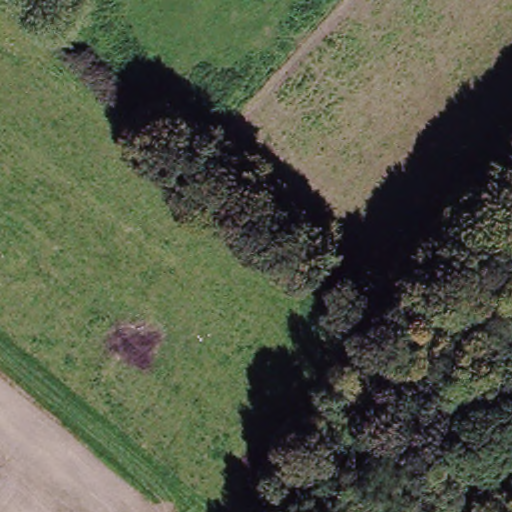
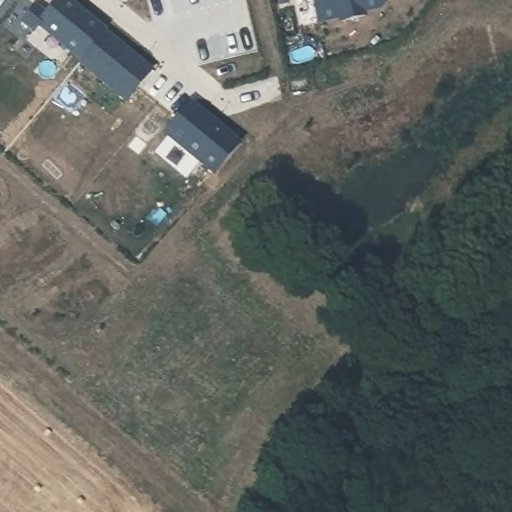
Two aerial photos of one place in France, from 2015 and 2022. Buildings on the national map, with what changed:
new [(108,30),(85,57),(42,22),(37,28),(25,18),(38,2),(49,11),(58,0),(72,0),(108,30)]
new [(388,0),(384,7),(368,11),(369,15),(344,21),(344,17),(323,22),(317,0),(387,0),(388,0)]
new [(154,69),(129,98),(84,59),(108,30),(154,69)]
new [(190,98),(239,139),(214,171),(163,129),(190,98)]

